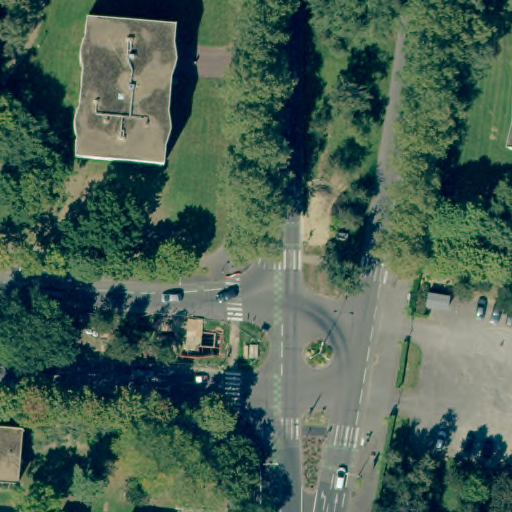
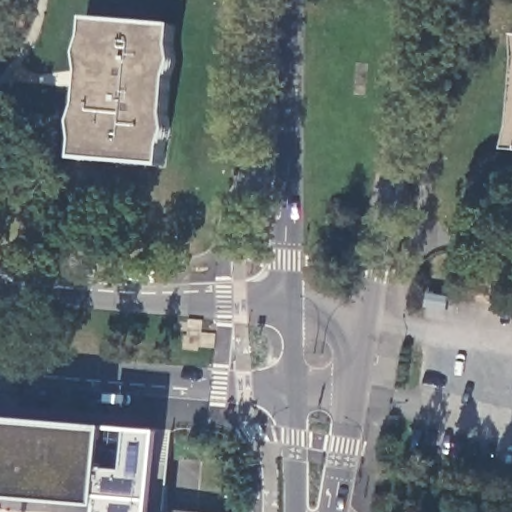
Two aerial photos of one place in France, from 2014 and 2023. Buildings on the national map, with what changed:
unchanged [(75,151),(73,119),(80,84),(79,47),(86,13),(175,20),(176,58),(168,93),(171,127),(164,160),(75,151)]
unchanged [(430,295),(452,299),(450,312),(428,309),(430,295)]
demolished [(0,421),(25,423),(19,478),(0,477),(0,421)]
new [(151,500),(150,503),(104,499),(104,497),(101,497),(0,497),(0,426),(165,437),(166,502),(155,501),(151,500)]
new [(104,497),(104,499),(150,503),(151,500),(155,501),(166,502),(165,512),(100,512),(101,497),(104,497)]

